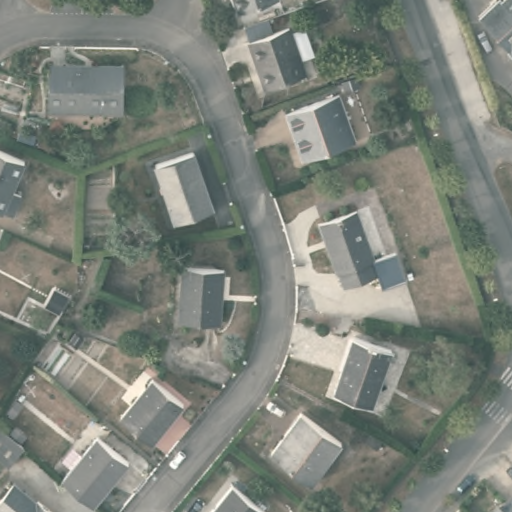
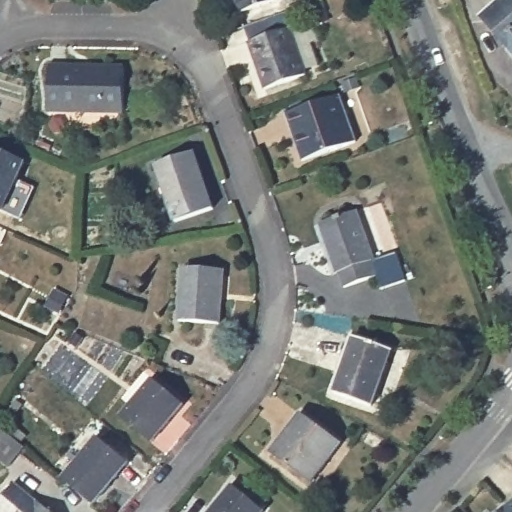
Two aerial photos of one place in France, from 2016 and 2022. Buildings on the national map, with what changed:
unchanged [(236,0),(259,0),(239,7),(236,0)]
unchanged [(486,25),(476,15),(494,0),(502,0),(503,0),(512,0),(512,48),(491,22),(486,25)]
unchanged [(251,39),(289,26),(307,72),(266,85),(251,39)]
unchanged [(51,64),(126,65),(124,112),(49,110),(51,64)]
unchanged [(341,92),(358,139),(304,159),(287,111),(341,92)]
unchanged [(27,150),(13,181),(24,186),(14,206),(0,200),(0,139),(27,150)]
unchanged [(155,162),(191,142),(220,196),(183,215),(155,162)]
unchanged [(377,258),(382,272),(347,283),(342,270),(340,270),(330,240),(323,220),(362,206),(368,226),(379,257),(377,258)]
unchanged [(182,317),(182,300),(185,264),(225,266),(222,303),(222,320),(182,317)]
unchanged [(397,347),(376,402),(338,389),(359,333),(397,347)]
unchanged [(160,375),(189,400),(155,438),(126,413),(160,375)]
unchanged [(345,435),(315,475),(276,444),(306,406),(345,435)]
unchanged [(5,465),(0,460),(0,427),(22,445),(5,465)]
unchanged [(64,476),(99,433),(130,459),(95,502),(64,476)]
unchanged [(0,508),(0,500),(15,482),(36,500),(39,497),(57,512),(5,512),(0,508)]
unchanged [(210,510),(234,482),(265,508),(262,512),(212,512),(210,510)]
unchanged [(512,504),(512,512),(503,512),(512,504)]
unchanged [(210,510),(212,512),(209,512),(210,510)]

